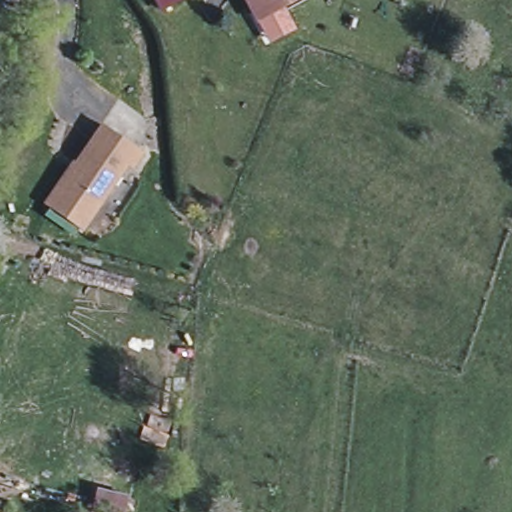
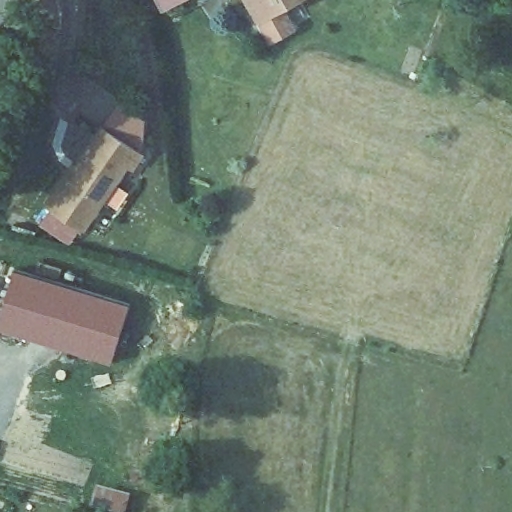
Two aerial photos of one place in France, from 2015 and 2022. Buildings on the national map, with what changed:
unchanged [(162,8),(158,0),(176,0),(162,8)]
unchanged [(258,10),(252,0),(291,0),(280,6),(261,16),(258,10)]
unchanged [(144,153),(133,169),(128,165),(84,230),(46,205),(71,170),(75,172),(79,166),(78,165),(104,126),(144,153)]
new [(131,304),(111,362),(0,327),(0,319),(16,268),(131,304)]
new [(103,474),(132,481),(128,498),(99,490),(103,474)]

